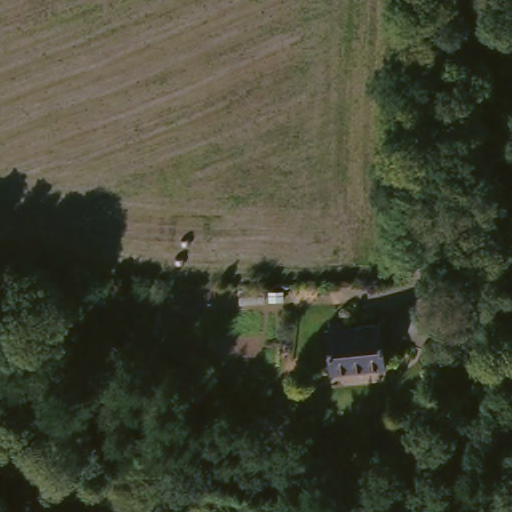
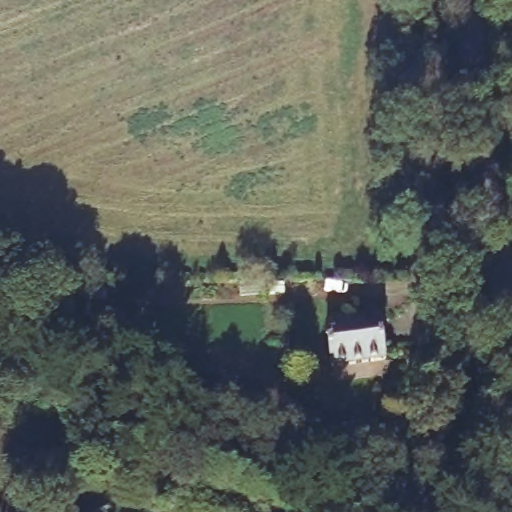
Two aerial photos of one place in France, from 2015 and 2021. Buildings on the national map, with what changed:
unchanged [(381,322),(384,363),(330,370),(326,327),(381,322)]

